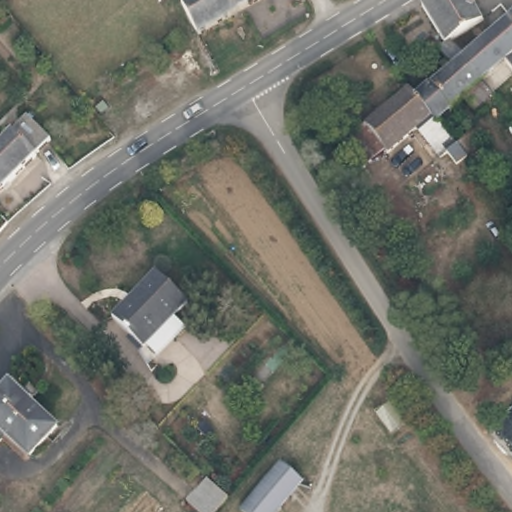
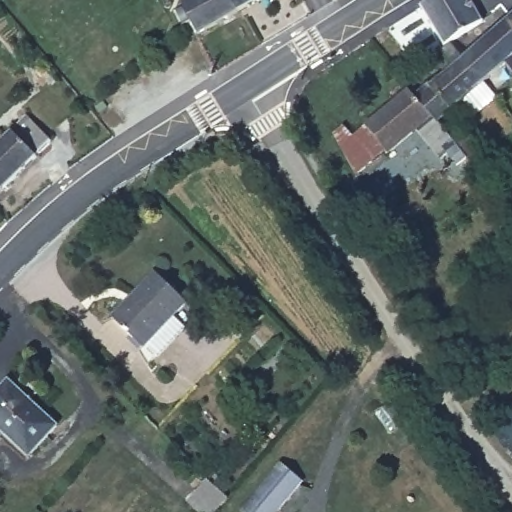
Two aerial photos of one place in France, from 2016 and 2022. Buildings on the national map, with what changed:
unchanged [(181,2),(184,0),(265,0),(197,35),(181,2)]
unchanged [(459,26),(442,39),(417,8),(428,0),(470,0),(480,12),(459,26)]
unchanged [(508,61),(488,30),(512,10),(512,66),(508,61)]
unchanged [(461,52),(488,30),(508,61),(482,81),(461,52)]
unchanged [(447,61),(435,43),(442,39),(454,56),(461,52),(482,81),(484,84),(493,96),(476,107),(467,97),(452,109),(438,119),(465,152),(455,162),(445,151),(432,161),(410,133),(406,128),(387,104),(410,83),(412,87),(427,76),(447,61)]
unchanged [(375,156),(357,173),(335,132),(344,124),(353,134),(387,104),(406,128),(410,133),(379,161),(375,156)]
unchanged [(47,150),(0,191),(0,152),(27,128),(47,150)]
unchanged [(112,322),(153,277),(184,305),(141,350),(112,322)]
unchanged [(0,426),(0,391),(11,381),(57,429),(29,455),(0,426)]
unchanged [(239,506),(277,457),(299,475),(269,512),(246,512),(239,506)]
unchanged [(211,512),(199,512),(185,497),(209,475),(227,493),(211,512)]

